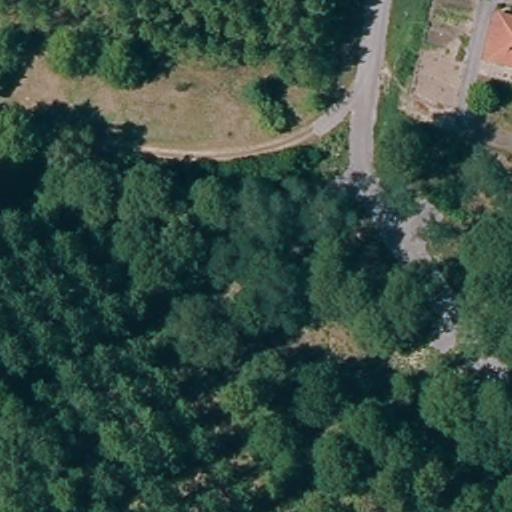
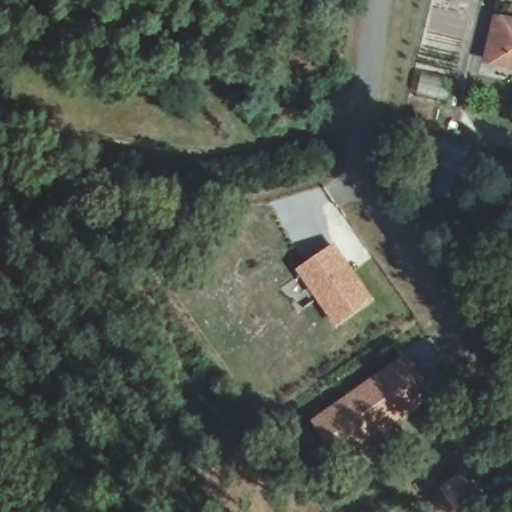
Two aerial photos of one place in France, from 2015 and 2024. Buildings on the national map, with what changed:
unchanged [(482,58),(494,18),(512,24),(512,68),(482,58)]
new [(333,244),(371,295),(337,320),(299,267),(333,244)]
new [(383,367),(406,351),(416,366),(430,384),(401,405),(351,441),(337,452),(313,419),(327,408),(383,367)]

